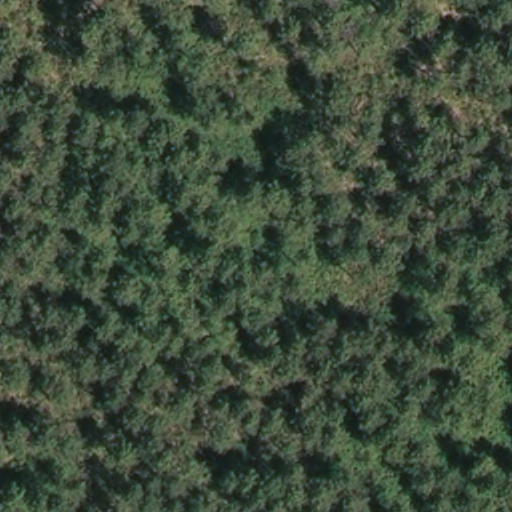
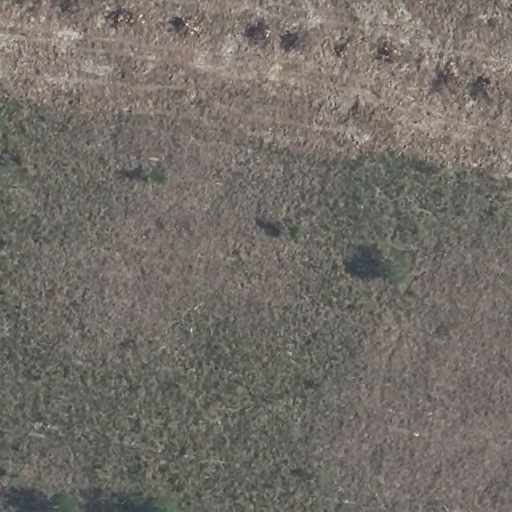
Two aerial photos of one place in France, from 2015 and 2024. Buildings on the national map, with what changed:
[]

